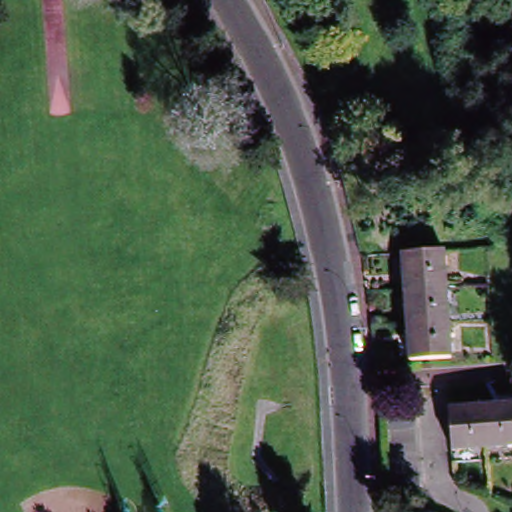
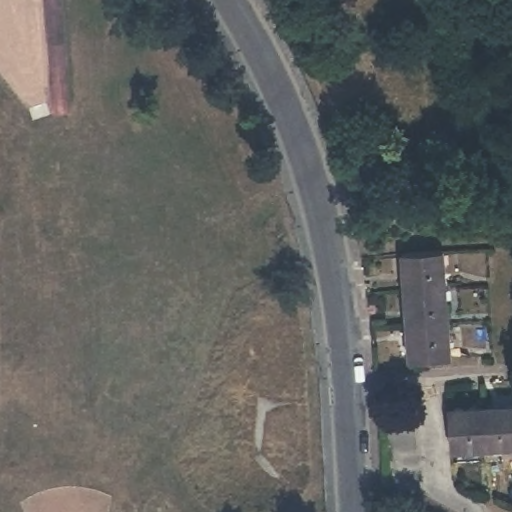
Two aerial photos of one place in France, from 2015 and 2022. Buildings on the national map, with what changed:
unchanged [(444,288),(406,291),(402,291),(399,253),(403,253),(442,250),(444,288)]
unchanged [(406,291),(444,288),(447,324),(427,325),(407,327),(405,327),(402,291),(406,291)]
unchanged [(405,327),(407,327),(427,325),(447,324),(450,358),(444,358),(436,359),(424,360),(418,360),(417,361),(407,361),(405,327)]
unchanged [(512,446),(486,447),(482,407),(512,405),(512,446)]
unchanged [(482,407),(486,447),(450,450),(447,409),(482,407)]
unchanged [(387,475),(387,461),(386,446),(385,430),(383,413),(411,412),(412,428),(413,444),(415,458),(416,473),(417,489),(388,491),(387,475)]

